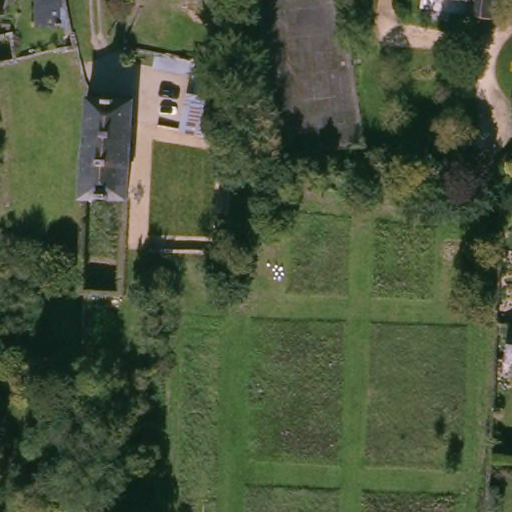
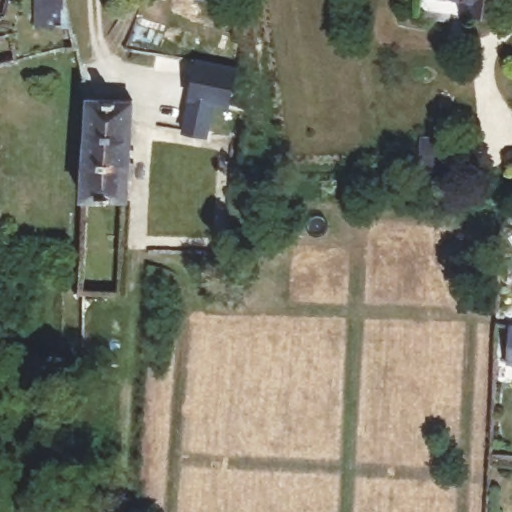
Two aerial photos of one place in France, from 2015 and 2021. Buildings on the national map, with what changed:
unchanged [(46,21),(46,0),(75,0),(75,12),(76,20),(46,21)]
unchanged [(481,0),(496,0),(494,13),(480,11),(481,0)]
demolished [(195,57),(234,61),(227,116),(215,115),(214,124),(189,122),(195,57)]
unchanged [(134,97),(129,194),(85,192),(89,116),(89,109),(90,94),(134,97)]
unchanged [(464,135),(461,163),(428,159),(432,130),(464,135)]

